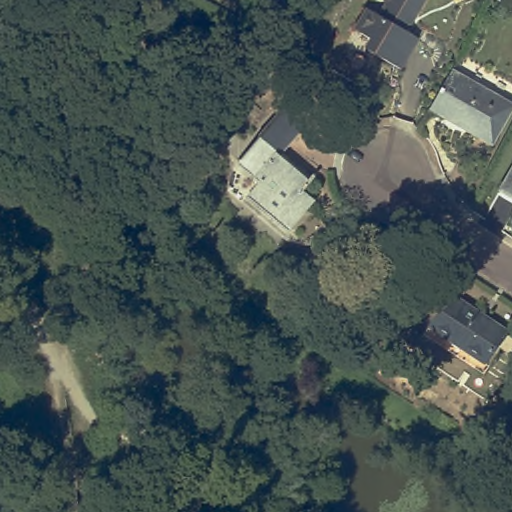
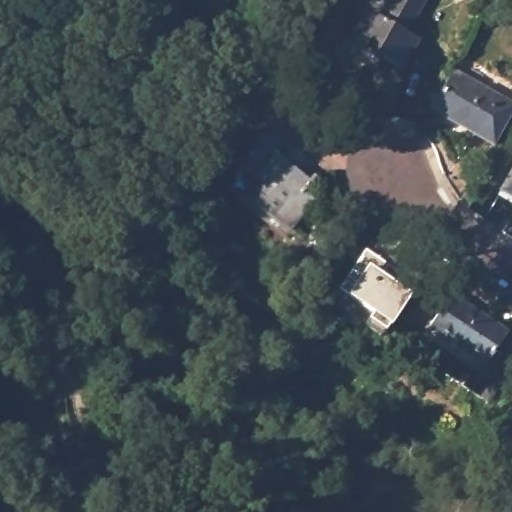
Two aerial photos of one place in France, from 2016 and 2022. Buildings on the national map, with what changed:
unchanged [(386,57),(391,47),(364,32),(376,11),(388,19),(392,12),(386,8),(390,0),(427,0),(413,24),(407,20),(403,27),(422,38),(405,67),(386,57)]
unchanged [(512,104),(512,114),(494,145),(429,108),(452,69),(512,104)]
unchanged [(267,208),(237,184),(256,163),(247,156),(270,129),(297,98),(317,115),(291,147),(311,163),(315,160),(325,168),(316,179),(327,189),(299,223),(317,239),(297,234),(267,208)]
unchanged [(512,198),(500,190),(512,168),(512,198)]
new [(365,249),(398,272),(405,263),(422,274),(386,330),(333,295),(365,249)]
unchanged [(426,316),(447,284),(503,323),(482,354),(476,363),(420,324),(426,316)]

